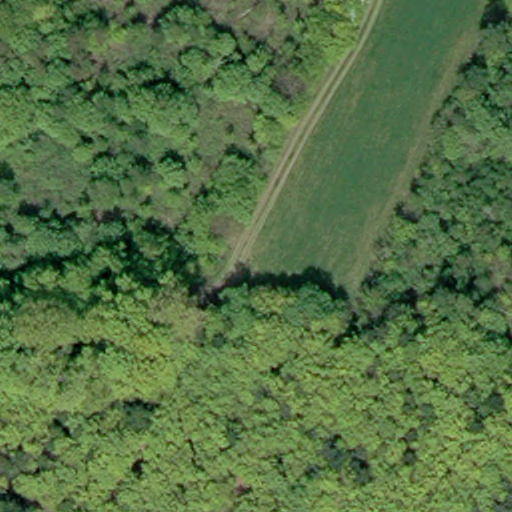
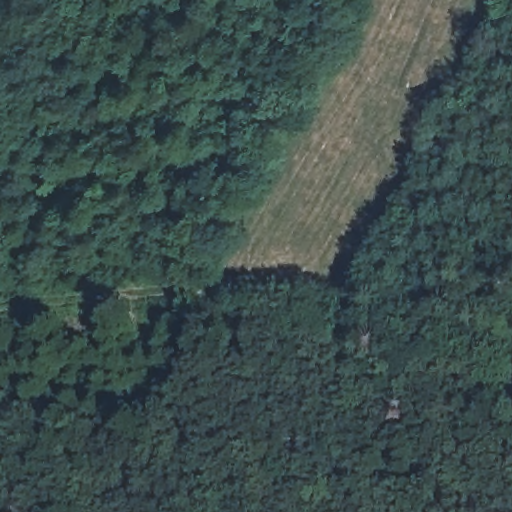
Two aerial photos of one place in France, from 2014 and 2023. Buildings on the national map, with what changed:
unchanged [(47,48),(41,61),(27,54),(34,41),(47,48)]

